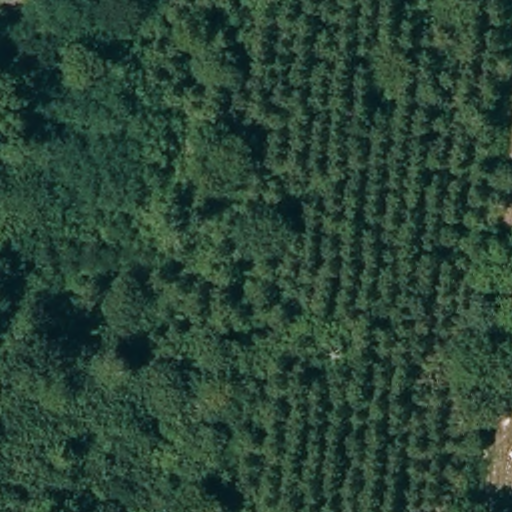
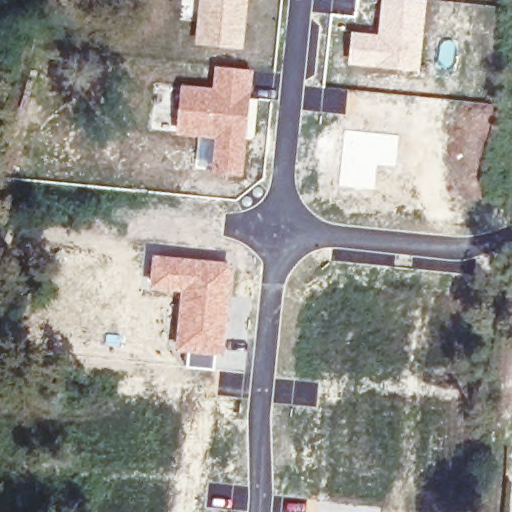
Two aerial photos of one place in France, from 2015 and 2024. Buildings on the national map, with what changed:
new [(248,0),(242,47),(194,43),(199,0),(248,0)]
new [(377,34),(381,0),(426,0),(419,72),(347,64),(350,31),(377,34)]
new [(180,84),(211,87),(214,65),(253,70),(244,177),(193,169),(197,137),(175,134),(180,84)]
new [(151,254),(233,263),(225,348),(224,354),(185,352),(174,352),(179,292),(148,288),(151,254)]
new [(185,352),(224,354),(225,348),(246,351),(244,374),(184,368),(185,352)]

